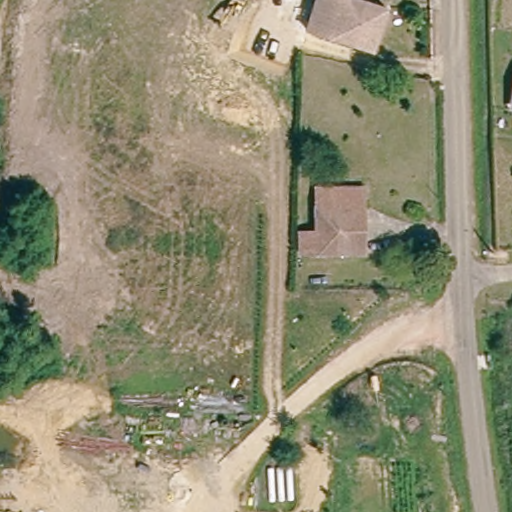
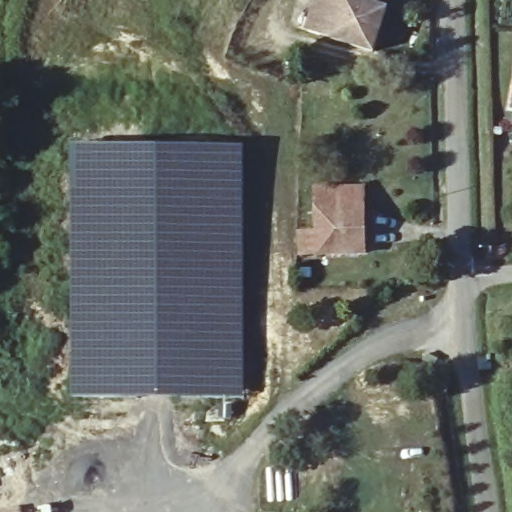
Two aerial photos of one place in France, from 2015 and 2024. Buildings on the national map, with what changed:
unchanged [(382,7),(370,49),(316,33),(323,0),(361,0),(382,7)]
new [(69,308),(70,145),(244,145),(244,398),(145,397),(70,397),(68,342),(69,308)]
unchanged [(363,254),(307,254),(307,232),(322,232),(322,187),(363,187),(363,210),(363,254)]

